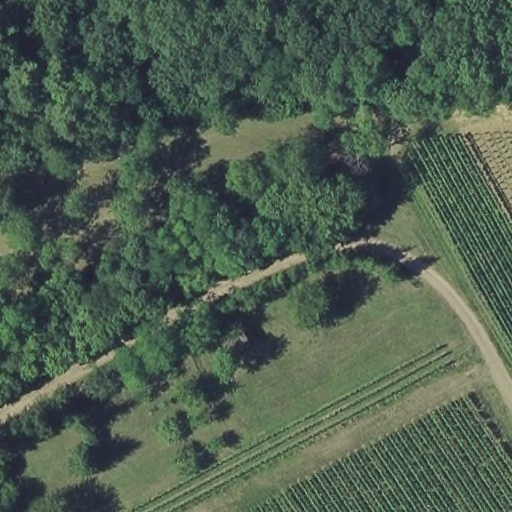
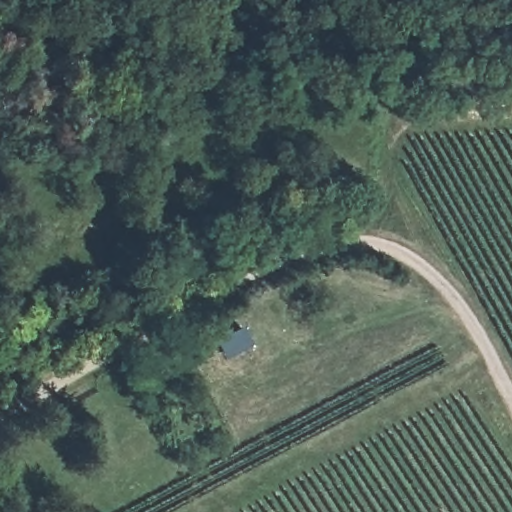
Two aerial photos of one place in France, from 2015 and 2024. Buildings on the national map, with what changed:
unchanged [(232,362),(214,333),(241,318),(258,344),(232,362)]

